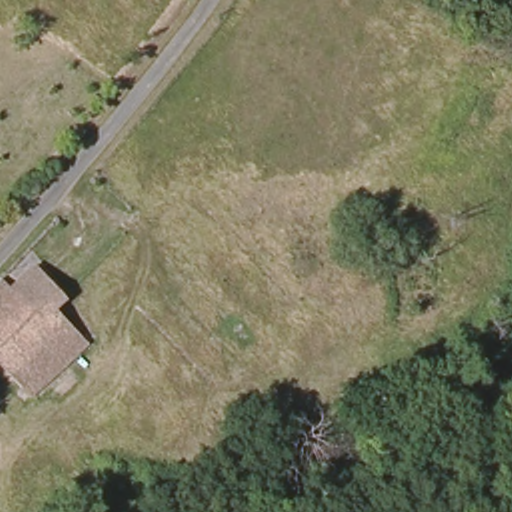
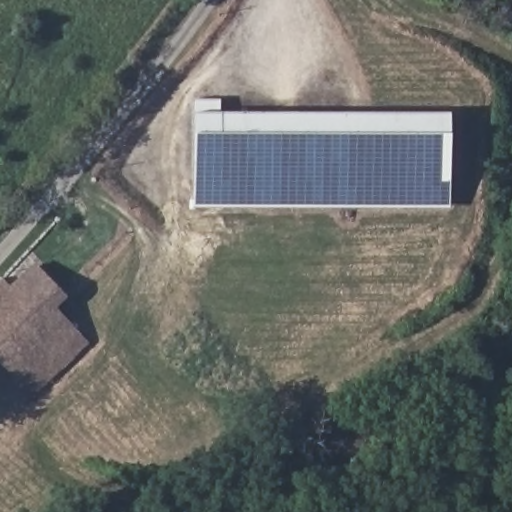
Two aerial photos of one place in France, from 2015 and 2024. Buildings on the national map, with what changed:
new [(194,207),(194,113),(194,100),(220,100),(221,112),(450,113),(449,209),(194,207)]
unchanged [(37,394),(28,385),(0,357),(0,286),(9,277),(20,286),(44,264),(55,276),(73,295),(60,307),(83,331),(91,341),(37,394)]

